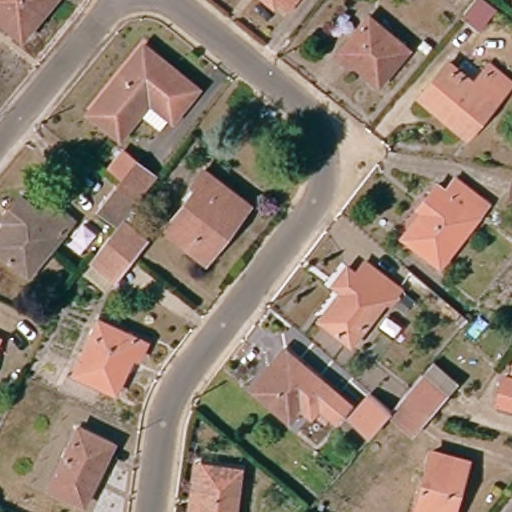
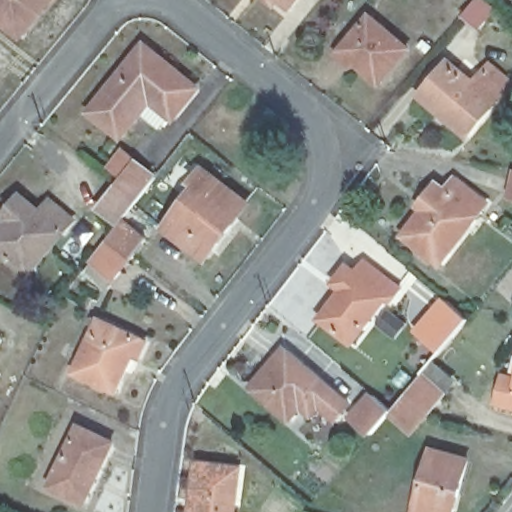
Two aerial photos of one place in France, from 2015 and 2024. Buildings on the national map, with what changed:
unchanged [(0,8),(0,0),(47,0),(25,28),(0,8)]
unchanged [(279,0),(292,0),(288,6),(279,0)]
unchanged [(463,9),(469,0),(491,0),(494,3),(478,21),(463,9)]
unchanged [(373,15),(412,47),(383,81),(358,59),(353,65),(340,54),(373,15)]
unchanged [(145,46),(196,89),(171,119),(151,103),(121,139),(90,112),(145,46)]
unchanged [(452,61),(478,83),(493,65),(512,82),(512,83),(471,131),(448,111),(425,93),(430,86),(452,61)]
unchanged [(101,211),(122,186),(140,165),(158,179),(141,201),(126,219),(147,235),(130,258),(111,283),(88,266),(108,242),(120,226),(101,211)]
unchanged [(194,184),(189,181),(201,166),(246,201),(204,256),(163,225),(194,184)]
unchanged [(410,239),(431,216),(423,209),(430,200),(441,186),(453,195),(462,183),(491,205),(451,256),(442,266),(426,253),(410,239)]
unchanged [(0,244),(18,223),(10,216),(23,201),(43,218),(56,204),(77,222),(30,278),(0,253),(0,244)]
unchanged [(341,300),(347,304),(352,296),(338,284),(350,270),(361,278),(372,265),(402,291),(392,303),(388,300),(351,344),(324,321),(341,300)]
new [(412,331),(435,305),(438,307),(445,300),(468,320),(438,353),(412,331)]
unchanged [(98,317),(146,339),(139,354),(135,353),(119,388),(75,369),(98,317)]
unchanged [(338,405),(323,392),(315,401),(306,393),(293,407),(259,378),(281,351),(278,348),(288,336),(326,368),(336,376),(351,389),(338,405)]
unchanged [(460,378),(448,392),(450,394),(434,412),(416,434),(390,414),(408,392),(424,373),(437,358),(460,378)]
unchanged [(505,403),(512,377),(512,404),(505,403)]
unchanged [(371,437),(352,421),(371,398),(390,414),(371,437)]
unchanged [(56,486),(84,427),(116,442),(88,502),(56,486)]
unchanged [(458,512),(420,512),(437,452),(473,462),(458,512)]
unchanged [(210,463),(247,469),(239,512),(202,512),(210,463)]

